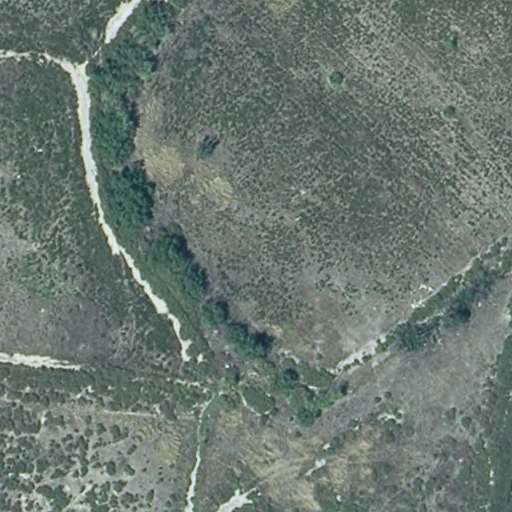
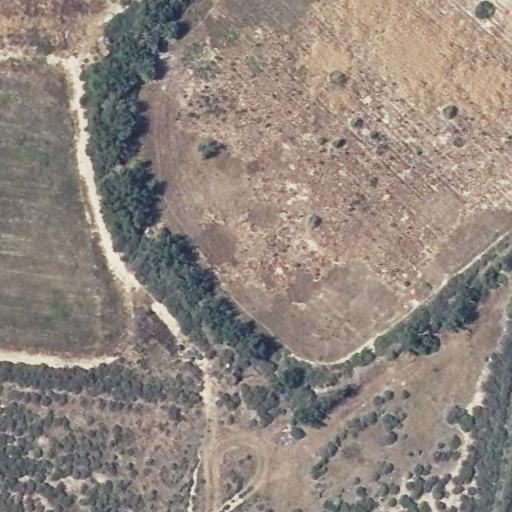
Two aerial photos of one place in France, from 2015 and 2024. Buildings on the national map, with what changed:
[]

